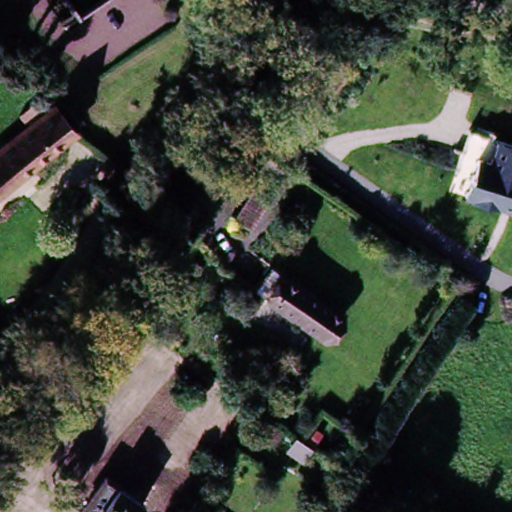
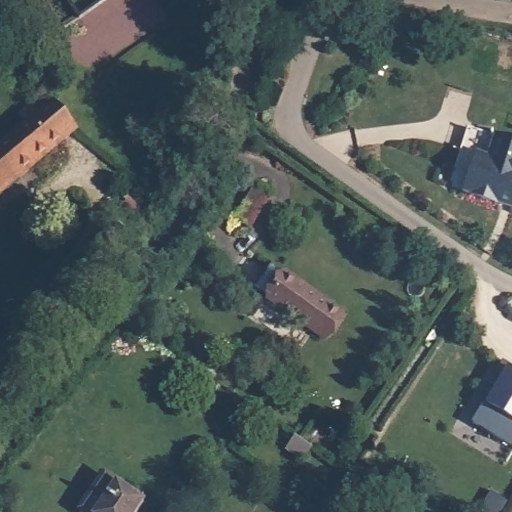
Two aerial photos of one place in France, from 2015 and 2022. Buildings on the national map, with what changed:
unchanged [(42,106),(67,133),(0,189),(0,143),(42,106)]
unchanged [(492,136),(512,143),(512,211),(462,195),(473,157),(485,160),(492,136)]
unchanged [(277,192),(250,235),(230,223),(257,182),(277,192)]
unchanged [(291,274),(346,318),(327,342),(272,299),(291,274)]
new [(471,425),(497,387),(490,384),(505,363),(512,367),(512,447),(511,449),(471,425)]
unchanged [(118,485),(142,503),(136,512),(78,512),(82,507),(105,475),(118,485)]

